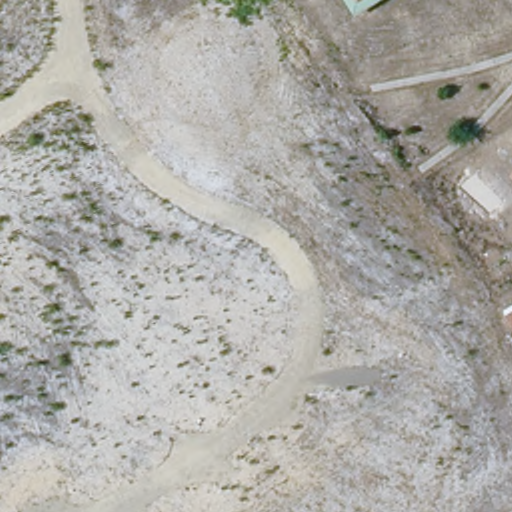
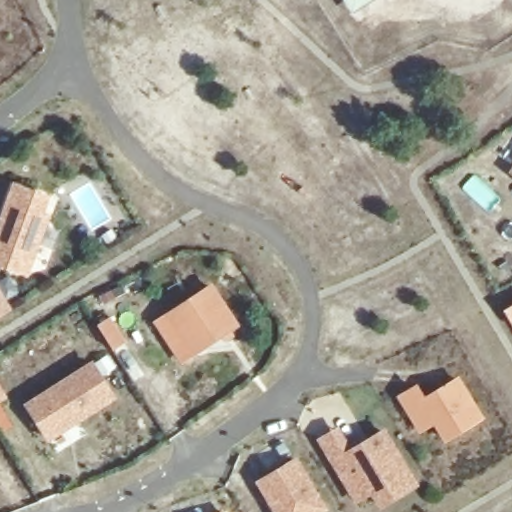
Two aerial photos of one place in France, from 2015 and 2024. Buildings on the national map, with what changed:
unchanged [(347,0),(371,0),(354,11),(347,0)]
new [(45,212),(50,213),(29,274),(0,265),(0,218),(13,180),(51,195),(45,212)]
new [(214,282),(242,325),(196,357),(166,314),(214,282)]
new [(0,318),(0,286),(13,310),(0,318)]
unchanged [(503,307),(512,302),(512,325),(503,307)]
new [(119,398),(50,442),(24,403),(94,359),(119,398)]
new [(416,382),(424,395),(459,374),(485,418),(447,443),(434,423),(422,431),(398,393),(416,382)]
new [(338,423),(352,446),(386,425),(421,483),(380,509),(371,495),(359,505),(317,438),(338,423)]
new [(297,454),(330,507),(322,512),(276,512),(257,480),(297,454)]
new [(227,508),(229,512),(221,512),(227,508)]

